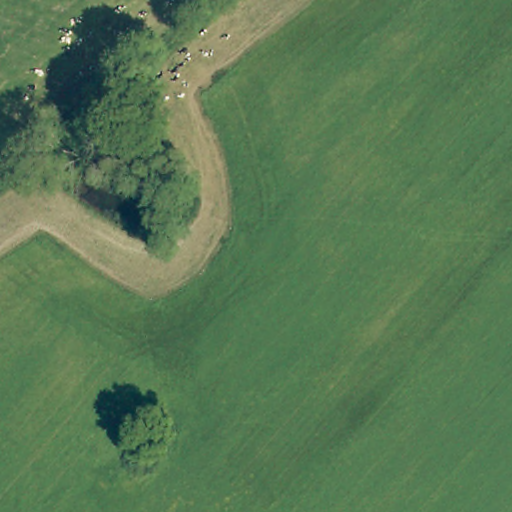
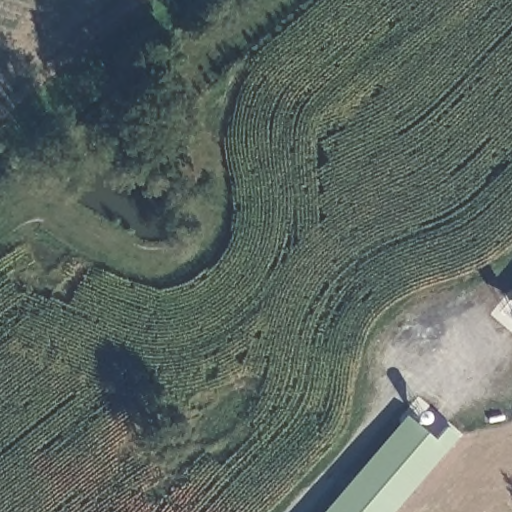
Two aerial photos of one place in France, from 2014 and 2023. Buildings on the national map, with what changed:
new [(505,299),(512,290),(512,305),(505,299)]
new [(391,512),(320,512),(404,413),(433,438),(445,425),(457,436),(391,512)]

